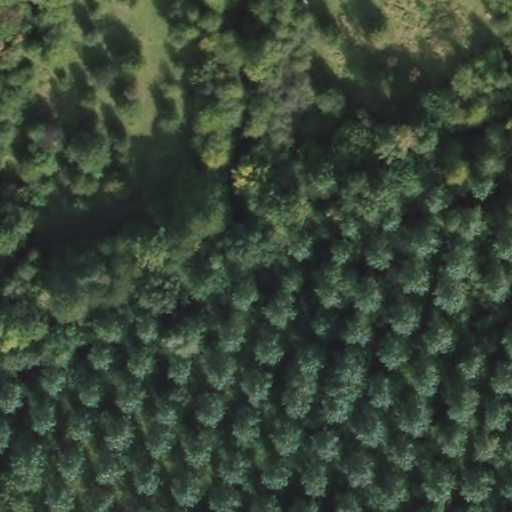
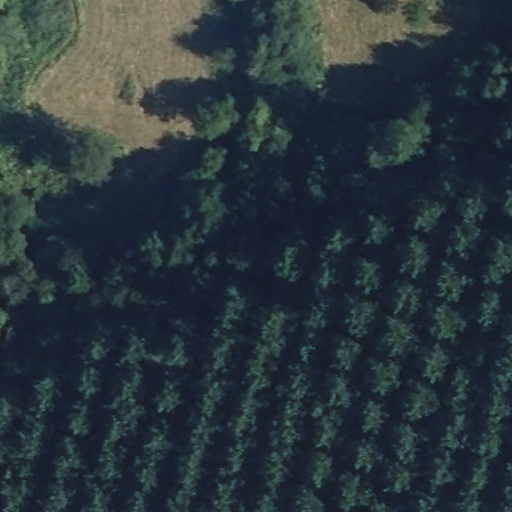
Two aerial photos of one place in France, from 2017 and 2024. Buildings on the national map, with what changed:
[]

